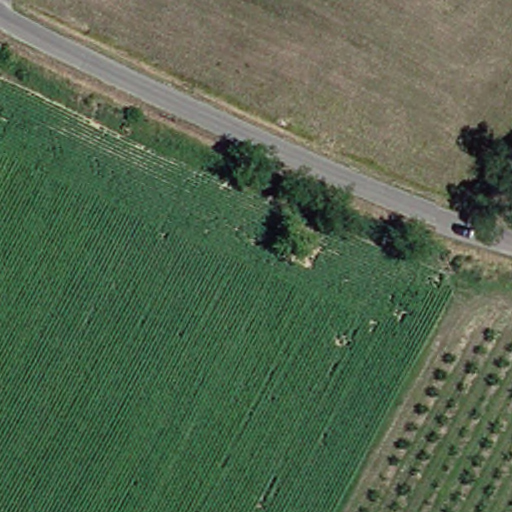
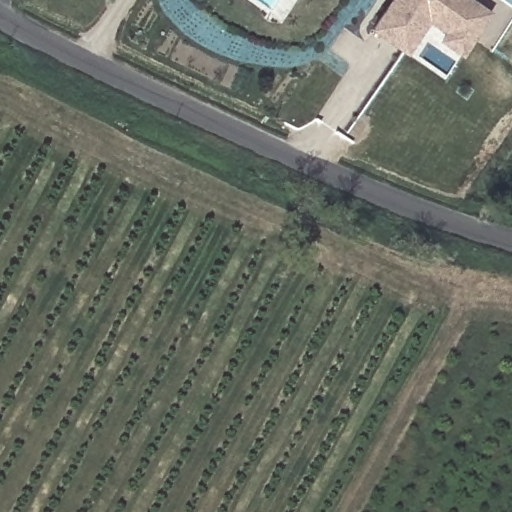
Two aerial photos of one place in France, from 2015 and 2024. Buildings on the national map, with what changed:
new [(441,36),(446,27),(432,18),(410,52),(377,31),(396,0),(475,0),(487,7),(472,32),(461,48),(441,36)]

